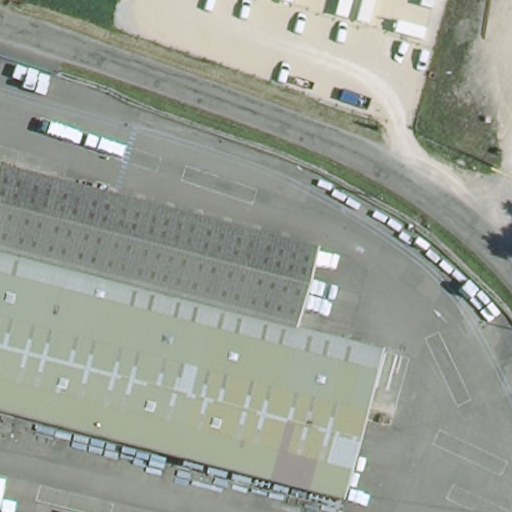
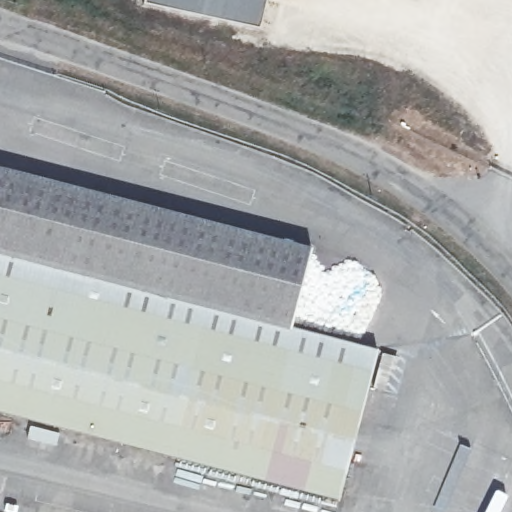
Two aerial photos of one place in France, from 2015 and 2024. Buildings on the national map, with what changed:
new [(261,29),(144,4),(145,0),(267,0),(261,29)]
unchanged [(287,330),(0,275),(0,173),(310,253),(287,330)]
unchanged [(337,500),(0,414),(0,275),(287,330),(373,353),(337,500)]

